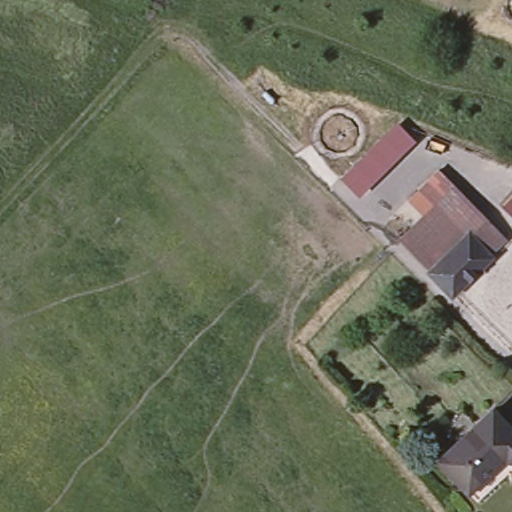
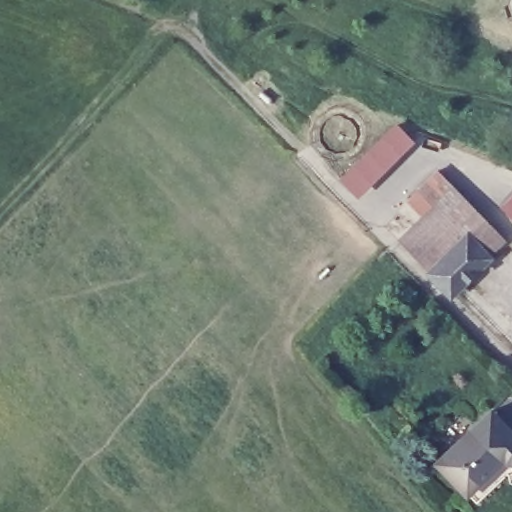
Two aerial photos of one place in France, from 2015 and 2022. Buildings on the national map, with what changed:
unchanged [(397,120),(416,141),(359,197),(341,178),(397,120)]
unchanged [(394,243),(409,229),(421,217),(407,202),(439,172),(504,239),(485,260),(484,262),(462,283),(446,298),(426,276),(394,243)]
unchanged [(512,195),(512,216),(501,206),(512,195)]
unchanged [(467,429),(492,406),(512,428),(512,459),(511,459),(507,459),(502,457),(501,456),(499,455),(494,459),(467,429)]
unchanged [(438,456),(444,451),(467,429),(494,459),(472,481),(466,487),(438,456)]

